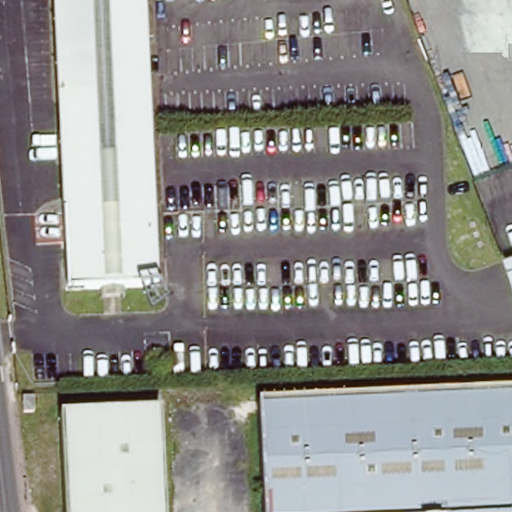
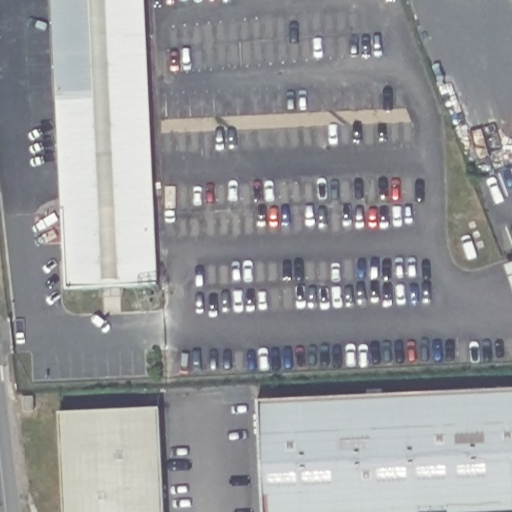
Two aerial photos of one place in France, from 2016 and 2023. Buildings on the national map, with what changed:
unchanged [(97,283),(65,283),(59,0),(149,0),(156,281),(121,282),(122,292),(98,293),(97,283)]
unchanged [(512,262),(512,265),(511,262),(512,262)]
unchanged [(261,398),(512,388),(512,512),(266,512),(261,398)]
unchanged [(23,394),(33,393),(33,406),(24,406),(23,394)]
unchanged [(61,415),(161,412),(164,512),(64,512),(61,415)]

